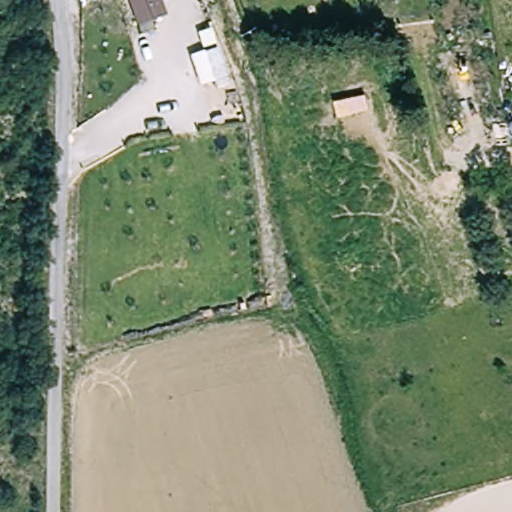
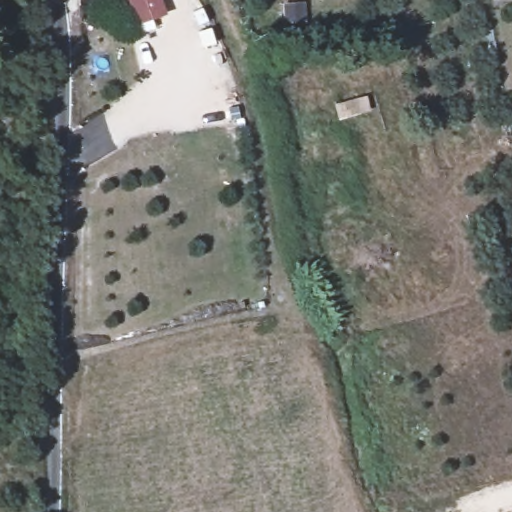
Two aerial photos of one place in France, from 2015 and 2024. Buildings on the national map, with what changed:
unchanged [(162,0),(167,15),(134,25),(125,0),(162,0)]

